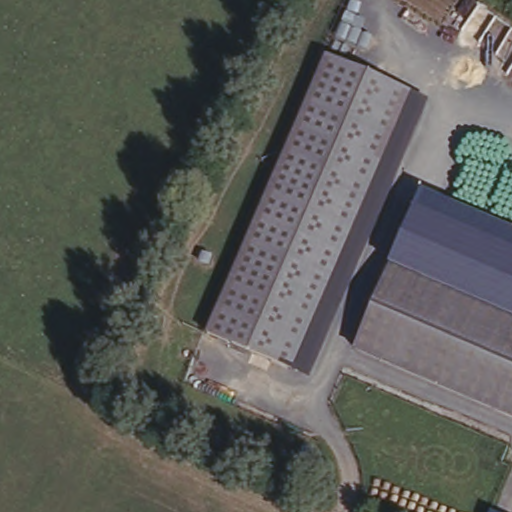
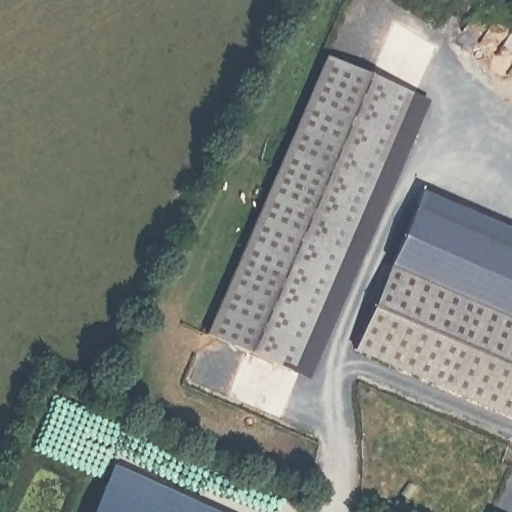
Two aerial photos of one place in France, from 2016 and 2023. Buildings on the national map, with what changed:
unchanged [(415,99),(288,372),(200,333),(327,62),(415,99)]
unchanged [(512,224),(512,408),(362,347),(427,187),(512,224)]
new [(209,512),(89,512),(109,468),(209,512)]
unchanged [(497,512),(490,512),(491,510),(497,512)]

